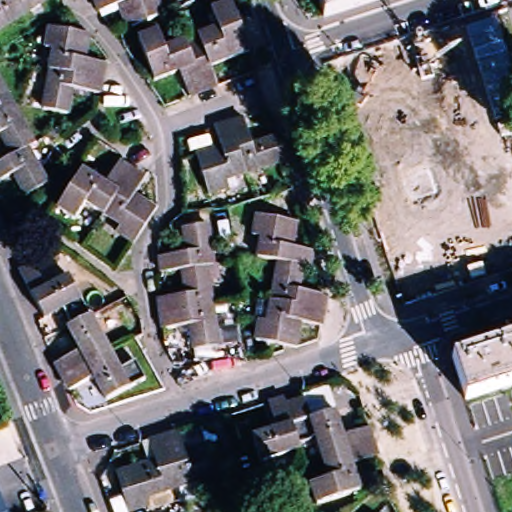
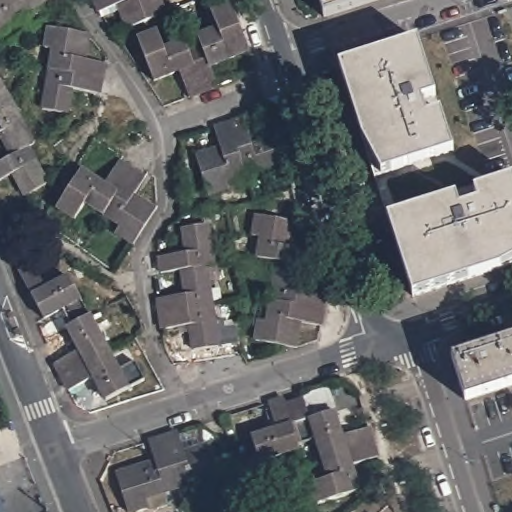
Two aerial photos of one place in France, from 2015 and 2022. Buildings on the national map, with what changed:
unchanged [(8,0),(19,18),(0,30),(0,0),(8,0)]
unchanged [(48,0),(19,18),(8,0),(48,0)]
unchanged [(126,30),(118,7),(98,14),(93,0),(160,0),(166,15),(126,30)]
unchanged [(319,0),(367,0),(324,15),(319,0)]
unchanged [(210,67),(217,87),(205,92),(185,42),(218,30),(210,11),(230,4),(249,52),(210,67)]
unchanged [(53,51),(46,50),(49,30),(88,35),(83,60),(105,63),(102,81),(49,72),(53,51)]
unchanged [(189,98),(180,72),(154,82),(138,40),(158,32),(165,50),(185,42),(205,92),(189,98)]
new [(435,97),(422,102),(427,117),(440,112),(453,151),(374,177),(338,65),(417,39),(435,97)]
unchanged [(102,81),(99,95),(71,92),(68,115),(43,110),(49,72),(102,81)]
unchanged [(11,109),(0,115),(0,89),(11,109)]
unchanged [(30,144),(23,147),(7,157),(0,144),(0,115),(11,109),(30,144)]
unchanged [(284,162),(246,176),(229,125),(244,120),(253,146),(276,137),(284,162)]
unchanged [(246,176),(226,183),(228,190),(208,196),(195,156),(219,147),(214,130),(229,125),(246,176)]
unchanged [(7,157),(23,147),(43,184),(20,197),(8,175),(0,179),(0,161),(7,157)]
unchanged [(87,206),(75,221),(58,208),(83,172),(104,186),(119,163),(133,172),(103,217),(87,206)]
unchanged [(133,172),(145,181),(134,197),(156,212),(133,247),(115,236),(120,229),(103,217),(133,172)]
new [(387,217),(455,195),(459,207),(477,201),(473,189),(512,177),(512,264),(412,296),(387,217)]
unchanged [(309,269),(303,268),(278,263),(256,258),(261,236),(253,235),(257,217),(297,224),(292,248),(313,252),(309,269)]
unchanged [(181,273),(161,276),(158,258),(186,254),(182,231),(208,226),(213,267),(206,267),(181,273)]
unchanged [(278,263),(303,268),(299,292),(326,297),(325,305),(324,308),(324,312),(271,302),(278,263)]
unchanged [(33,265),(46,290),(69,277),(90,317),(71,327),(63,311),(44,320),(19,272),(33,265)]
unchanged [(161,315),(158,300),(184,296),(181,273),(206,267),(212,307),(161,315)]
unchanged [(256,341),(259,321),(266,322),(271,302),(324,312),(321,328),(301,325),(296,348),(256,341)]
unchanged [(218,347),(193,351),(189,327),(163,331),(161,315),(212,307),(218,347)]
unchanged [(62,377),(56,364),(79,351),(68,329),(71,327),(90,317),(109,352),(62,377)]
unchanged [(471,352),(486,347),(490,346),(512,338),(512,385),(466,401),(451,358),(471,352)]
unchanged [(62,377),(109,352),(119,371),(135,362),(144,380),(105,402),(93,379),(70,391),(62,377)]
unchanged [(280,400),(284,398),(286,404),(299,447),(301,451),(259,463),(252,438),(276,431),(268,404),(280,400)]
unchanged [(286,404),(303,398),(310,421),(336,412),(343,437),(369,429),(374,443),(321,460),(316,442),(299,447),(286,404)]
unchanged [(163,437),(178,432),(184,452),(208,445),(221,486),(202,492),(199,484),(180,490),(163,437)]
unchanged [(163,437),(180,490),(146,502),(148,509),(139,512),(129,512),(116,475),(154,462),(148,442),(163,437)]
unchanged [(374,443),(378,458),(352,467),(359,492),(316,506),(310,486),(328,480),(321,460),(374,443)]
unchanged [(3,512),(0,512),(0,503),(3,512)]

